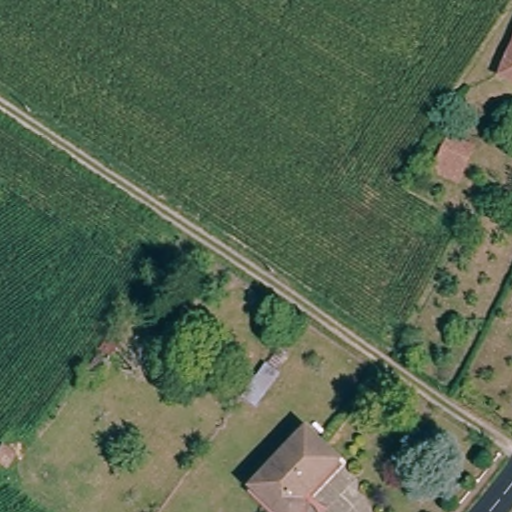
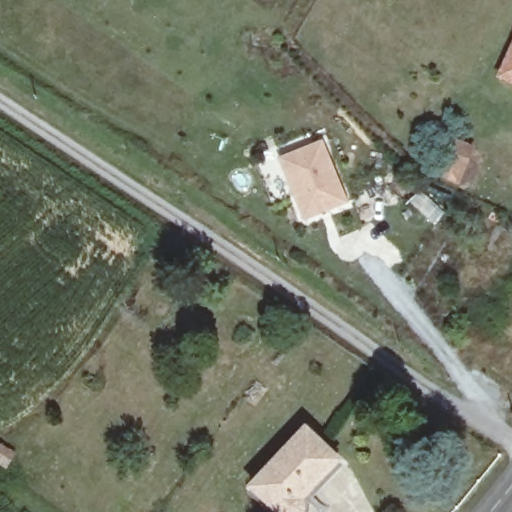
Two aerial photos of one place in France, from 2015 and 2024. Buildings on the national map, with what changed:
unchanged [(500,75),(512,46),(512,80),(500,75)]
unchanged [(474,144),(457,182),(431,172),(447,133),(474,144)]
new [(304,222),(279,159),(324,140),(349,202),(304,222)]
unchanged [(4,446),(0,443),(0,427),(1,425),(13,434),(4,446)]
unchanged [(304,501),(305,505),(304,508),(304,512),(280,512),(250,487),(299,428),(334,455),(303,498),(304,501)]

